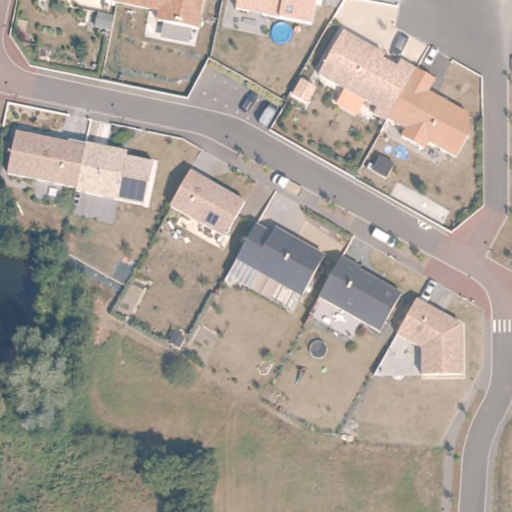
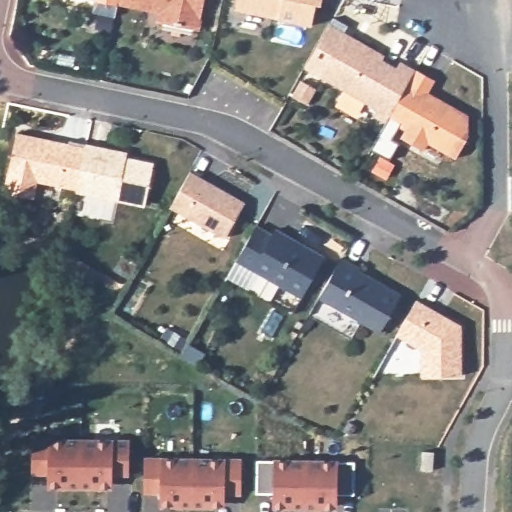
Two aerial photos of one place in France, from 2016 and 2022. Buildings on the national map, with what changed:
unchanged [(156,23),(157,12),(94,2),(94,0),(204,0),(198,31),(156,23)]
unchanged [(234,11),(236,0),(320,0),(313,29),(234,11)]
unchanged [(381,54),(380,59),(395,68),(400,61),(433,81),(428,93),(468,118),(470,134),(455,160),(425,144),(421,150),(400,138),(405,130),(371,116),(375,108),(363,101),(354,113),(335,101),(342,89),(317,76),(342,33),(381,54)]
unchanged [(152,159),(145,205),(5,175),(15,131),(152,159)]
unchanged [(244,201),(223,238),(166,208),(190,171),(244,201)]
unchanged [(323,259),(301,298),(234,261),(252,223),(323,259)]
unchanged [(400,293),(381,332),(316,295),(337,257),(400,293)]
unchanged [(461,323),(461,379),(418,378),(418,351),(393,337),(415,300),(461,323)]
new [(32,440),(81,440),(80,487),(48,486),(48,473),(32,472),(32,440)]
new [(81,440),(130,441),(130,474),(113,474),(113,487),(80,487),(81,440)]
new [(145,459),(194,459),(192,506),(160,505),(160,492),(144,492),(145,459)]
new [(194,459),(242,460),(241,493),(225,493),(225,506),(192,506),(194,459)]
new [(257,461),(306,461),(305,508),(272,507),(273,494),(256,493),(257,461)]
new [(306,461),(355,462),(354,495),(338,495),(337,508),(305,508),(306,461)]

